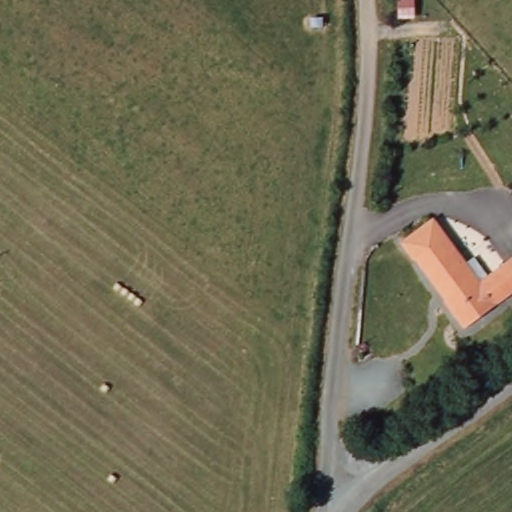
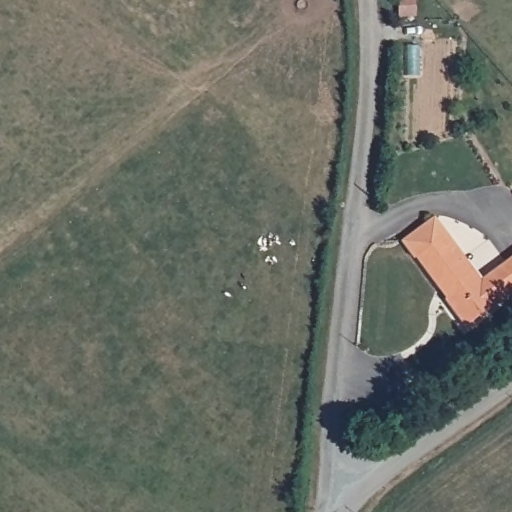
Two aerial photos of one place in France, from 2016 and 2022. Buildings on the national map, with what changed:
unchanged [(480,280),(512,257),(512,292),(462,328),(398,241),(432,217),(480,280)]

